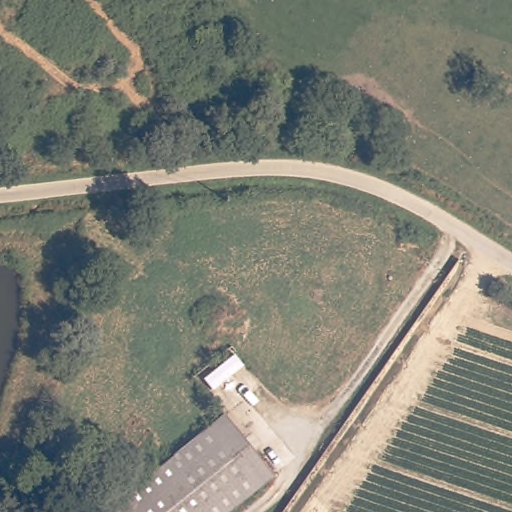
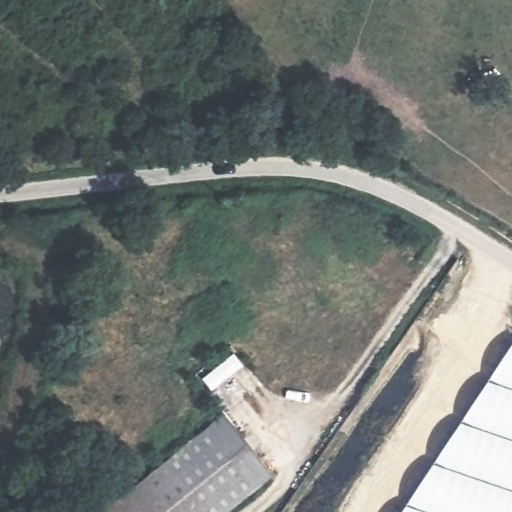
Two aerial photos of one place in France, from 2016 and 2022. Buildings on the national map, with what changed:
new [(400,512),(512,343),(512,512),(400,512)]
unchanged [(228,413),(275,470),(269,474),(223,512),(121,512),(114,504),(228,413)]
unchanged [(121,512),(104,512),(114,504),(121,512)]

